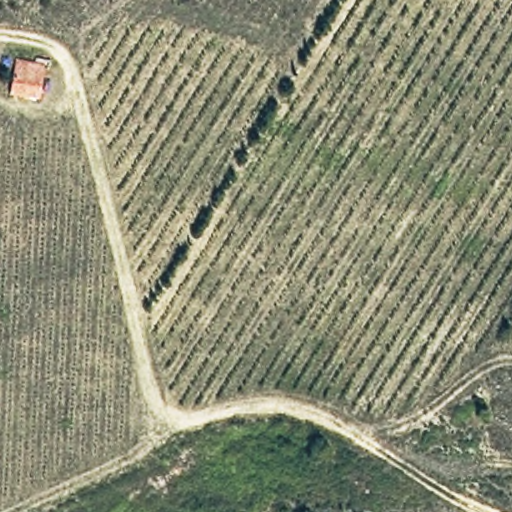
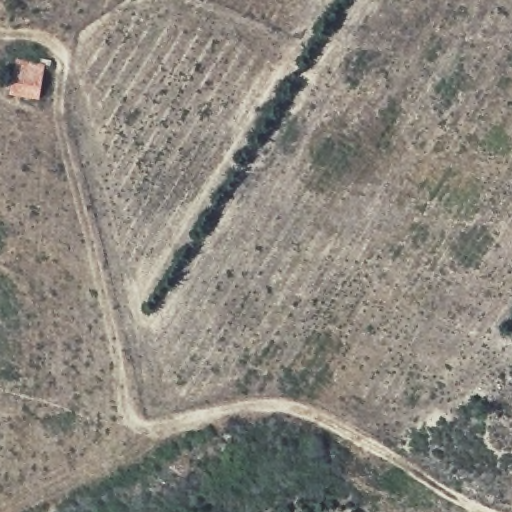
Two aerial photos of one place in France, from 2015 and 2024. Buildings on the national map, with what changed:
unchanged [(15,63),(45,69),(41,98),(10,92),(15,63)]

